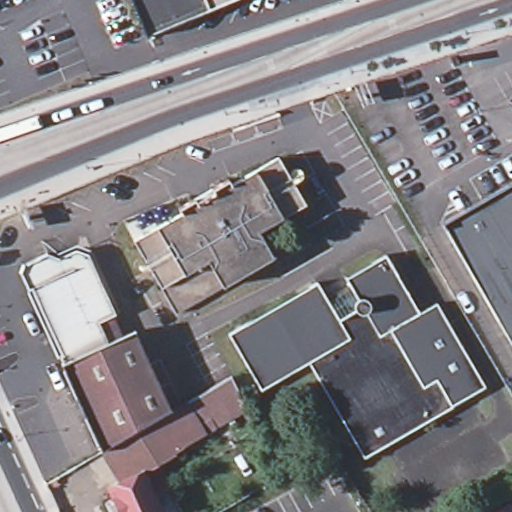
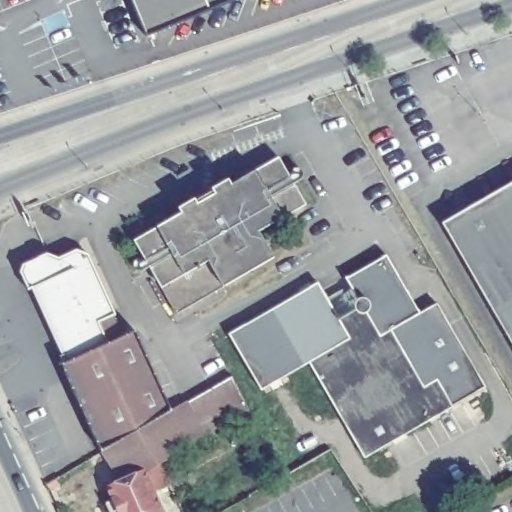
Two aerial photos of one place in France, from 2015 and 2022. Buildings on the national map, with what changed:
unchanged [(149,36),(133,0),(239,0),(149,36)]
unchanged [(256,234),(270,260),(174,315),(132,241),(275,158),(305,208),(256,234)]
unchanged [(465,212),(453,187),(487,167),(499,188),(512,181),(512,347),(441,225),(465,212)]
unchanged [(122,334),(111,339),(113,344),(122,365),(102,374),(130,433),(100,447),(19,270),(23,261),(45,253),(54,255),(75,246),(88,252),(122,334)]
unchanged [(434,305),(482,389),(362,458),(306,363),(260,391),(227,335),(316,283),(325,304),(350,290),(344,279),(384,254),(418,314),(434,305)]
unchanged [(100,447),(130,433),(102,374),(122,365),(113,344),(134,333),(165,405),(167,414),(171,411),(183,427),(195,422),(202,435),(177,451),(140,470),(107,483),(101,459),(100,447)]
unchanged [(250,405),(202,435),(195,422),(183,427),(171,411),(230,379),(250,405)]
unchanged [(117,512),(107,483),(140,470),(156,512),(117,512)]

